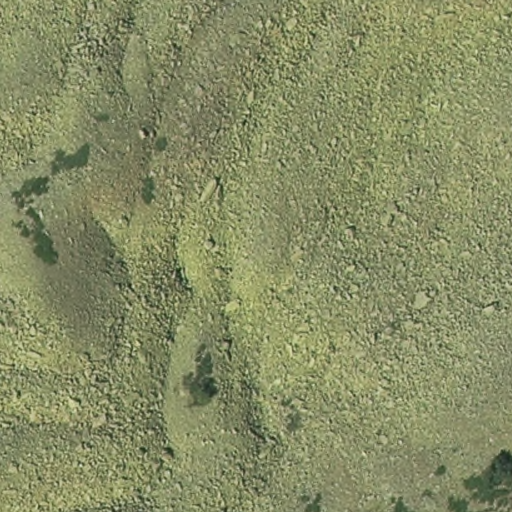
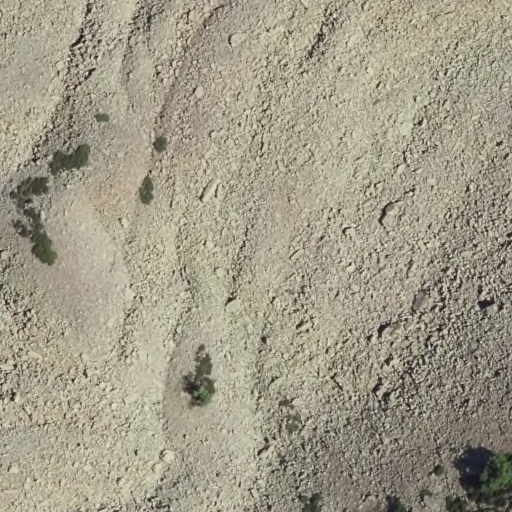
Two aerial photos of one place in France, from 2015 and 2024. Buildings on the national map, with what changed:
[]

